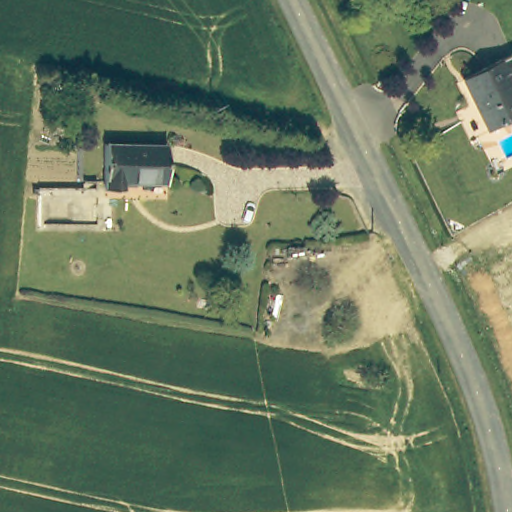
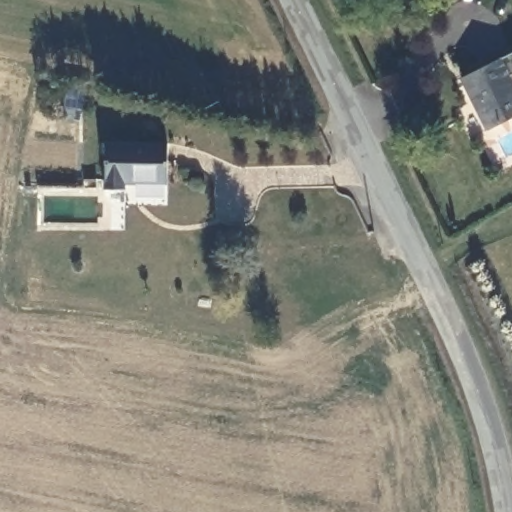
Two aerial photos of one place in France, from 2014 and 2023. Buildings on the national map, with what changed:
unchanged [(500,62),(512,86),(512,121),(488,133),(462,81),(500,62)]
unchanged [(165,147),(165,185),(127,183),(127,190),(105,189),(108,144),(165,147)]

